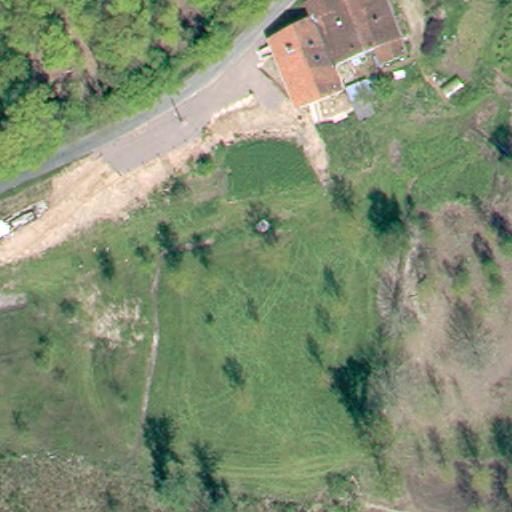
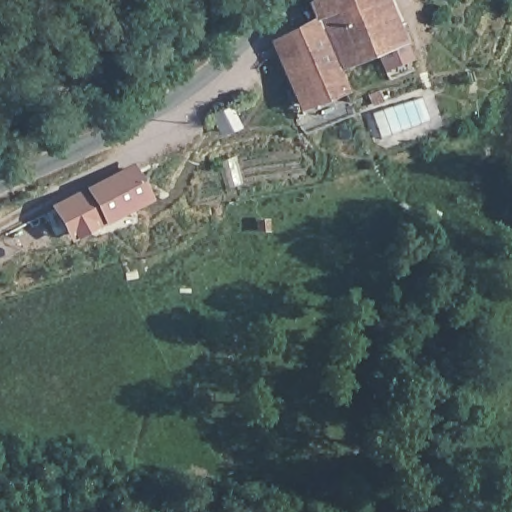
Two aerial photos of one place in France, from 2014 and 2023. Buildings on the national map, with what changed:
unchanged [(291,89),(274,47),(311,27),(309,18),(305,5),(315,1),(317,0),(326,0),(376,0),(376,1),(384,18),(400,60),(376,69),(369,56),(291,89)]
new [(83,187),(131,164),(149,201),(103,225),(69,242),(49,204),(83,187)]

